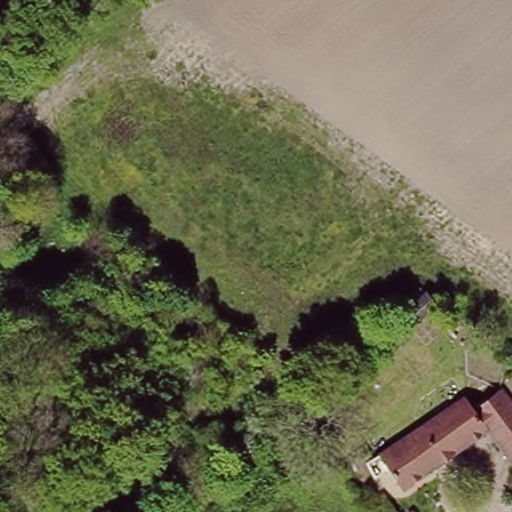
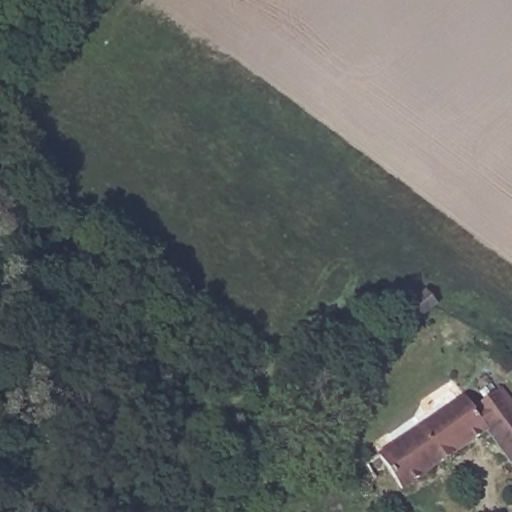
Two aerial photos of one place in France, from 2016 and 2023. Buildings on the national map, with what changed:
unchanged [(405,307),(428,290),(440,307),(418,324),(405,307)]
unchanged [(378,449),(463,393),(498,384),(512,401),(512,469),(487,435),(405,488),(393,471),(374,478),(363,460),(378,449)]
unchanged [(512,493),(512,497),(510,494),(512,493)]

